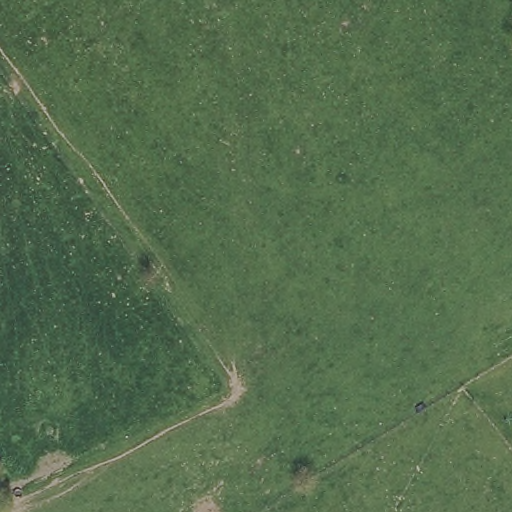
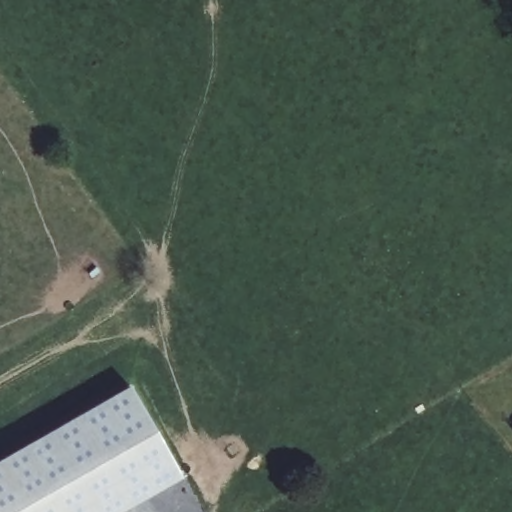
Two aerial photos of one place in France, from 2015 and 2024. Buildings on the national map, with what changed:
new [(183,478),(124,512),(0,512),(0,461),(131,387),(183,478)]
demolished [(512,442),(505,432),(512,428),(512,442)]

